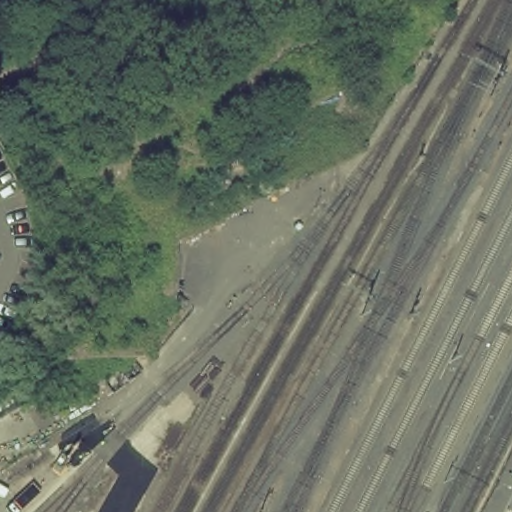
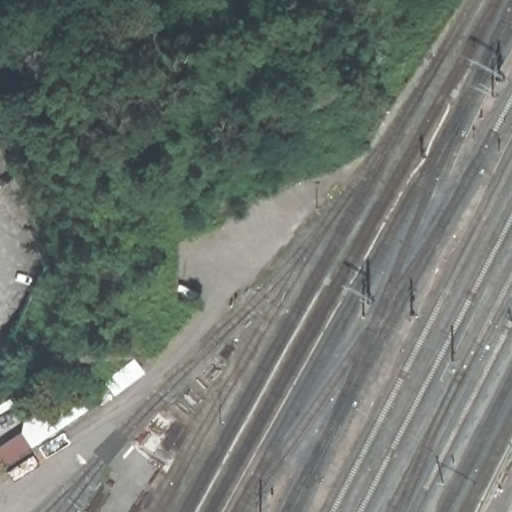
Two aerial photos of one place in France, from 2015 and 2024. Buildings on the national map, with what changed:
unchanged [(450,14),(359,147),(181,232),(177,301),(123,350),(74,344),(115,306),(84,254),(64,122),(248,13),(267,0),(443,0),(450,14)]

